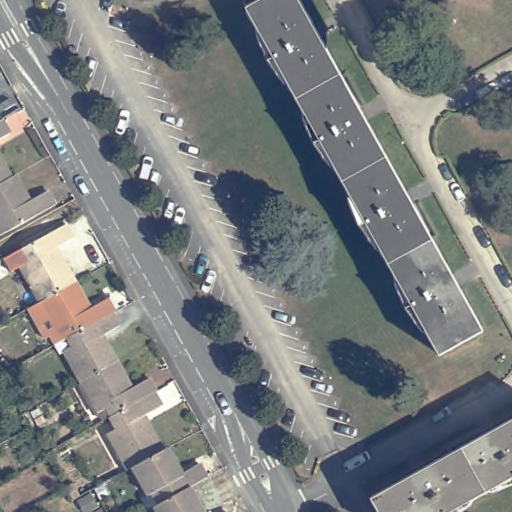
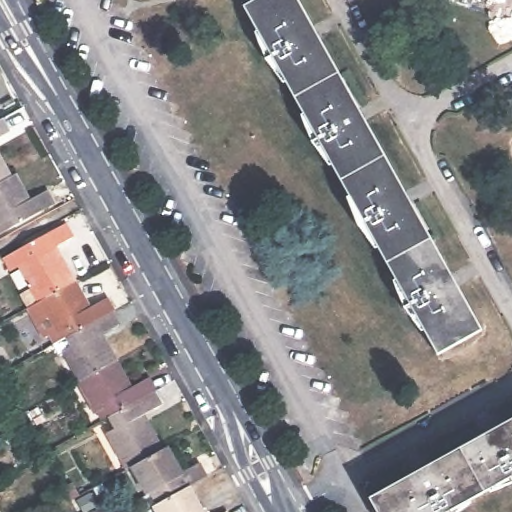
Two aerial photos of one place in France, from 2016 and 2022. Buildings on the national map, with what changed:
unchanged [(485,331),(444,353),(254,9),(270,0),(302,0),(485,331)]
unchanged [(13,139),(0,147),(0,129),(6,126),(13,139)]
unchanged [(0,191),(0,159),(14,184),(0,191)]
unchanged [(51,195),(59,209),(5,240),(0,232),(0,231),(5,229),(0,221),(0,191),(14,184),(20,181),(34,205),(51,195)]
unchanged [(39,310),(18,275),(1,284),(0,282),(0,269),(61,235),(69,249),(51,258),(71,292),(39,310)]
unchanged [(71,292),(88,282),(103,308),(85,317),(92,331),(70,344),(68,345),(67,345),(56,352),(50,343),(43,347),(26,318),(39,310),(71,292)]
unchanged [(118,333),(100,343),(115,370),(81,389),(64,358),(72,354),(68,345),(70,344),(92,331),(110,321),(118,333)]
unchanged [(147,385),(155,399),(150,401),(112,423),(108,415),(99,420),(81,389),(115,370),(129,395),(147,385)]
unchanged [(158,415),(140,425),(160,460),(133,474),(128,477),(106,438),(115,433),(110,425),(112,423),(150,401),(158,415)]
unchanged [(462,512),(380,512),(376,504),(512,429),(512,484),(462,512)]
unchanged [(180,483),(198,473),(206,486),(187,496),(158,512),(148,512),(144,505),(149,502),(133,474),(160,460),(165,456),(180,483)]
unchanged [(197,512),(158,512),(187,496),(197,512)]

